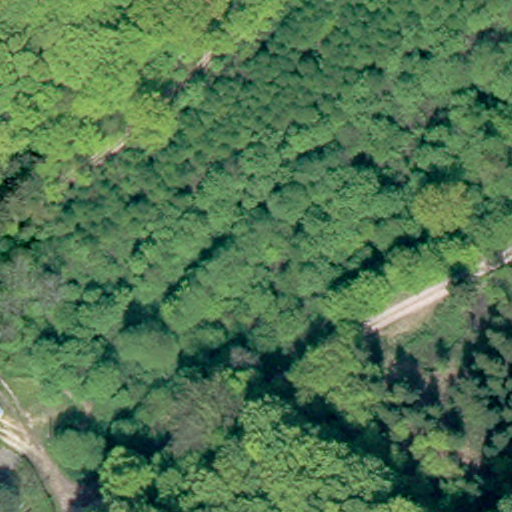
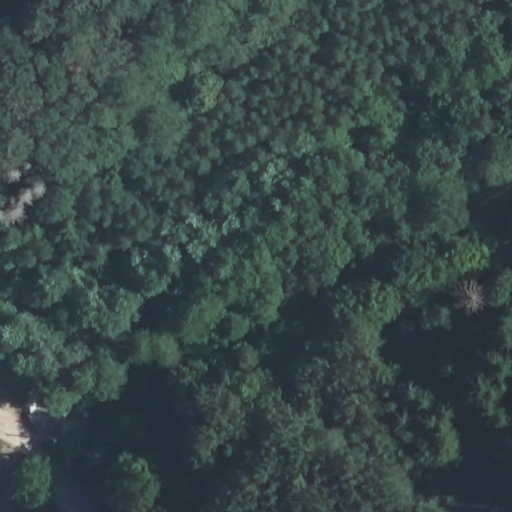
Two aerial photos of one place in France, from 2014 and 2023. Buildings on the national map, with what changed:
unchanged [(8,421),(3,427),(0,430),(0,415),(8,421)]
unchanged [(5,440),(0,447),(0,436),(5,440)]
unchanged [(5,478),(0,486),(0,475),(5,478)]

